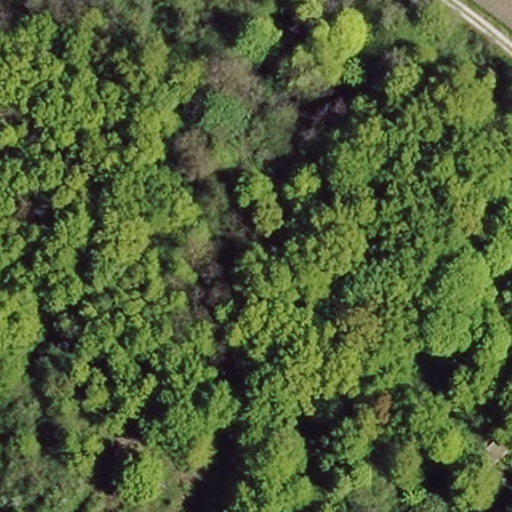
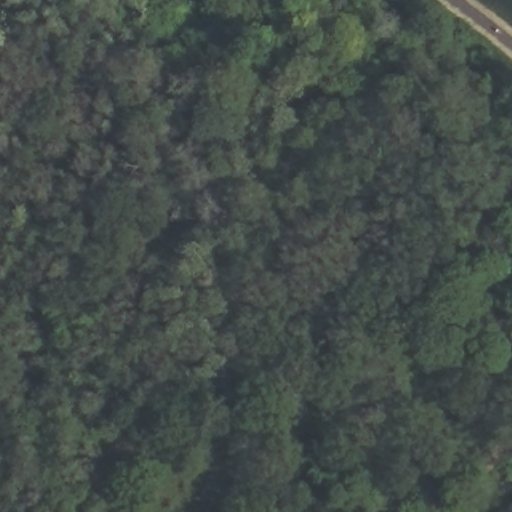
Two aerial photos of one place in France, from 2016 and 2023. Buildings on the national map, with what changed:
unchanged [(471,458),(505,425),(512,432),(512,450),(486,474),(471,458)]

